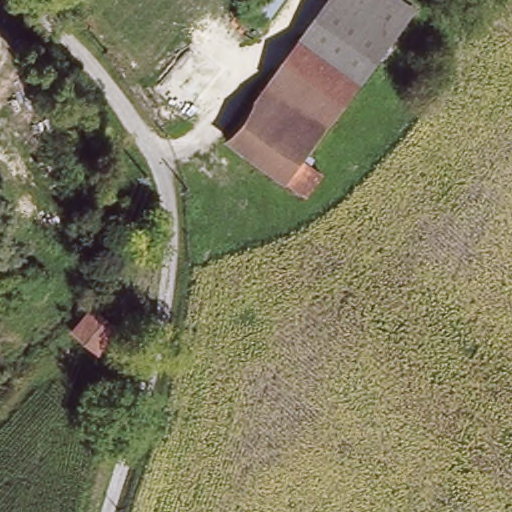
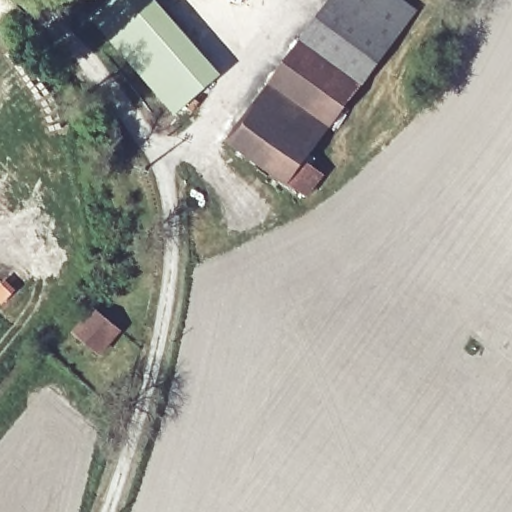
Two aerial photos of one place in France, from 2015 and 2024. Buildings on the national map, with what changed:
new [(110,0),(156,0),(222,75),(175,113),(91,16),(110,0)]
unchanged [(336,0),(397,0),(414,12),(307,169),(324,180),(311,199),(235,147),(336,0)]
demolished [(289,0),(267,31),(248,17),(259,0),(289,0)]
unchanged [(76,339),(95,318),(119,338),(100,360),(76,339)]

